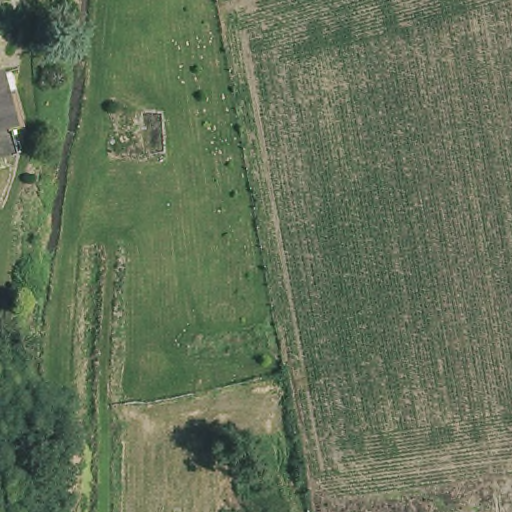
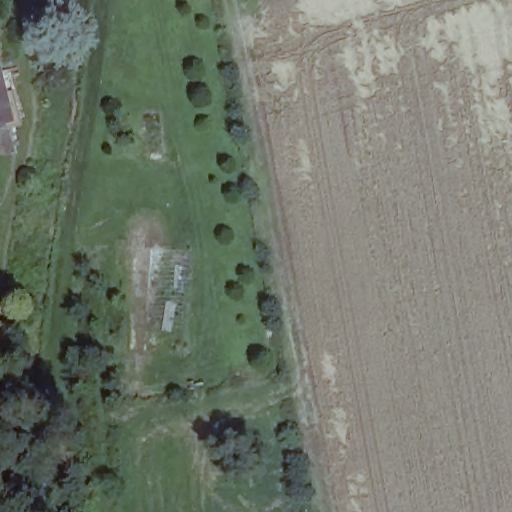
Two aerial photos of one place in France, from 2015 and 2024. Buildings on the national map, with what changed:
unchanged [(5,72),(17,120),(0,125),(0,74),(5,72)]

